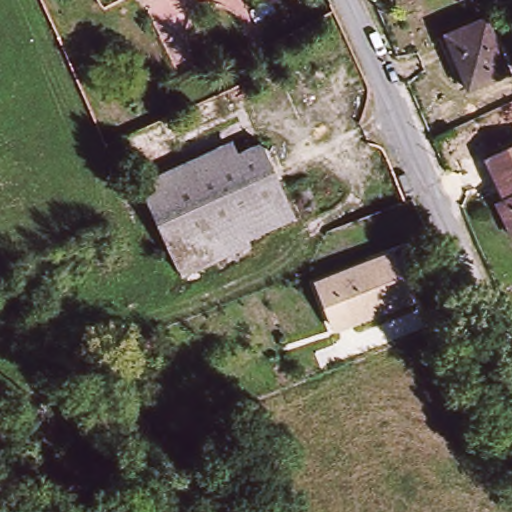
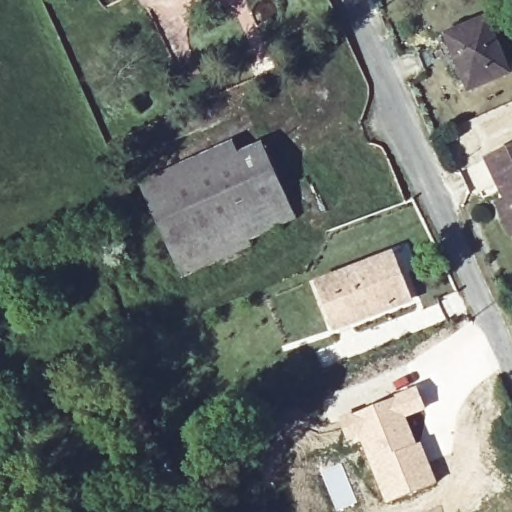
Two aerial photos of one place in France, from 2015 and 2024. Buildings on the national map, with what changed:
unchanged [(489,25),(511,76),(473,92),(451,42),(489,25)]
unchanged [(509,209),(487,160),(512,148),(512,236),(502,212),(509,209)]
unchanged [(289,213),(219,242),(197,184),(266,157),(289,213)]
unchanged [(173,260),(145,194),(193,174),(197,184),(219,242),(173,260)]
unchanged [(410,301),(340,328),(323,283),(393,257),(410,301)]
new [(416,385),(427,409),(407,419),(438,482),(386,504),(359,441),(349,446),(338,419),(416,385)]
new [(341,462),(357,503),(336,512),(319,470),(341,462)]

